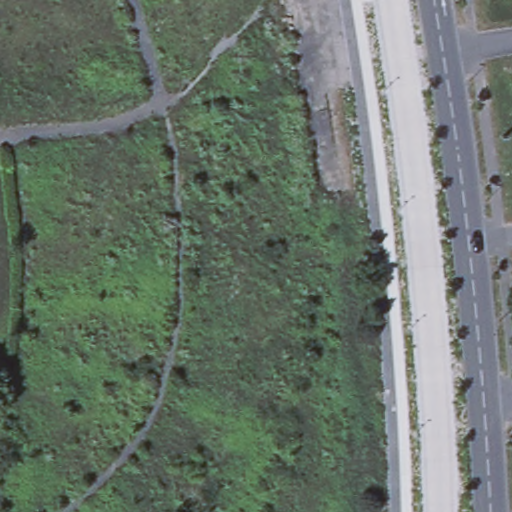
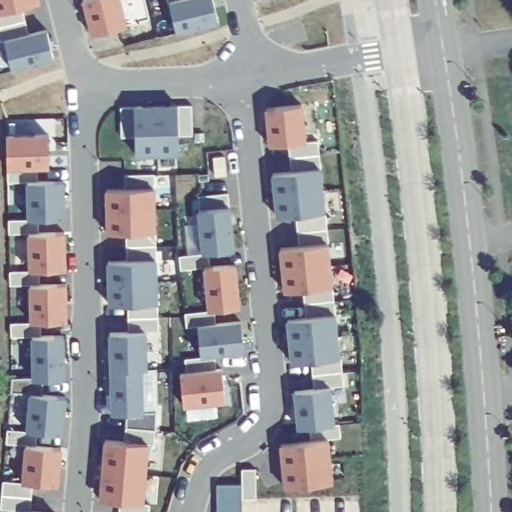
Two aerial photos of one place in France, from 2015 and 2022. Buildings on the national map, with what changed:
new [(41,1),(0,11),(0,0),(41,0),(41,1)]
new [(128,26),(89,36),(82,0),(122,0),(128,26)]
new [(221,22),(176,33),(167,2),(175,0),(214,0),(221,22)]
new [(54,59),(11,69),(3,38),(46,27),(54,59)]
new [(193,134),(179,135),(179,154),(134,154),(133,141),(120,137),(120,106),(134,105),(176,103),(191,105),(193,134)]
new [(306,139),(306,142),(318,140),(321,166),(326,210),(328,242),(332,285),(335,314),(339,356),(341,358),(344,385),(331,387),(335,422),(339,423),(341,437),(329,439),(333,482),(284,488),(279,443),(313,440),(312,426),(296,429),(292,389),(311,387),(309,360),(291,363),(286,319),(304,317),(302,289),(283,293),(279,248),(299,245),(295,214),(276,218),(271,175),(293,170),(291,142),(288,142),(269,144),(264,108),(303,104),(306,139)]
new [(0,508),(3,479),(20,481),(23,444),(5,442),(7,428),(25,430),(27,394),(5,394),(6,372),(30,373),(30,337),(10,336),(10,321),(29,321),(28,285),(9,284),(9,270),(27,270),(26,233),(8,233),(8,218),(27,218),(25,182),(7,181),(7,168),(5,133),(48,130),(49,166),(36,167),(37,179),(64,179),(66,218),(38,218),(39,231),(66,232),(67,269),(43,269),(43,282),(66,282),(68,321),(43,320),(44,334),(64,335),(65,379),(41,379),(40,392),(67,397),(63,434),(38,430),(38,444),(62,447),(59,484),(33,481),(31,510),(46,512),(22,512),(23,510),(0,508)]
new [(213,174),(212,157),(224,156),(225,174),(213,174)]
new [(155,230),(155,258),(156,302),(157,304),(158,331),(146,331),(147,368),(143,368),(144,411),(156,411),(154,444),(148,443),(143,502),(143,503),(149,503),(148,512),(119,512),(120,500),(98,500),(103,439),(125,440),(126,412),(111,414),(108,331),(126,330),(125,303),(108,305),(106,260),(125,259),(124,232),(106,233),(104,188),(125,187),(124,174),(154,173),(154,187),(155,230)]
new [(231,205),(235,249),(209,251),(211,265),(236,264),(241,307),(214,309),(216,323),(241,320),(243,352),(214,355),(216,368),(221,368),(226,401),(182,406),(179,372),(186,371),(184,358),(199,358),(201,356),(197,324),(185,325),(184,313),(207,310),(202,267),(179,268),(178,255),(201,253),(197,210),(199,209),(198,195),(227,192),(231,205)]
new [(241,497),(241,512),(216,512),(216,483),(241,483),(241,468),(256,468),(256,498),(241,497)]

